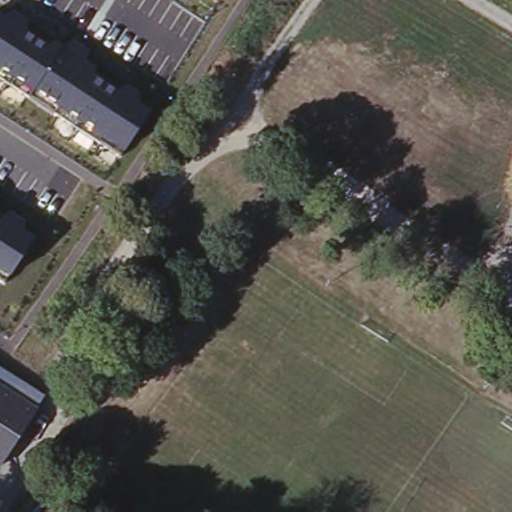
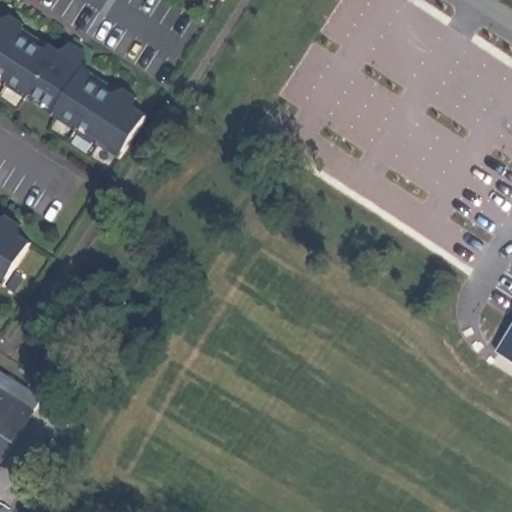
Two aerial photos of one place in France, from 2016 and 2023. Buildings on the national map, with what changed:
unchanged [(124,155),(0,76),(0,19),(150,114),(124,155)]
unchanged [(30,239),(4,281),(0,279),(0,219),(30,239)]
new [(512,324),(512,360),(495,350),(512,324)]
unchanged [(47,389),(2,461),(0,460),(0,361),(47,389)]

